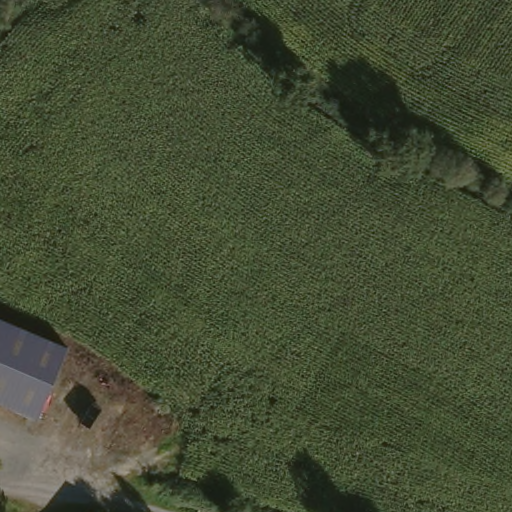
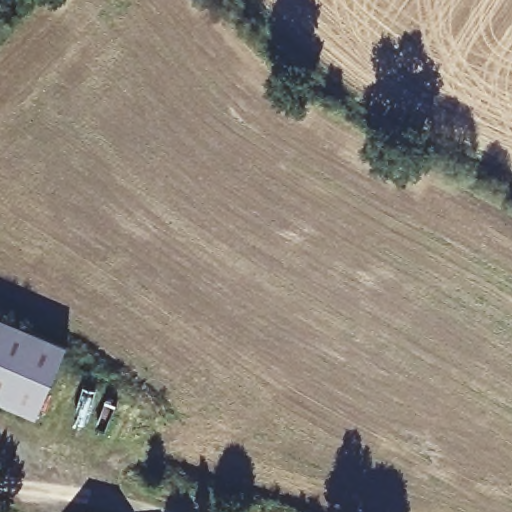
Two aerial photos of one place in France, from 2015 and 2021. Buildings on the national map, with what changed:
unchanged [(0,407),(0,323),(68,353),(37,424),(0,407)]

